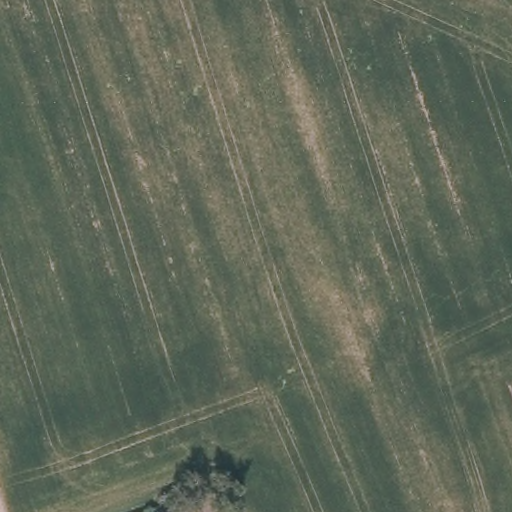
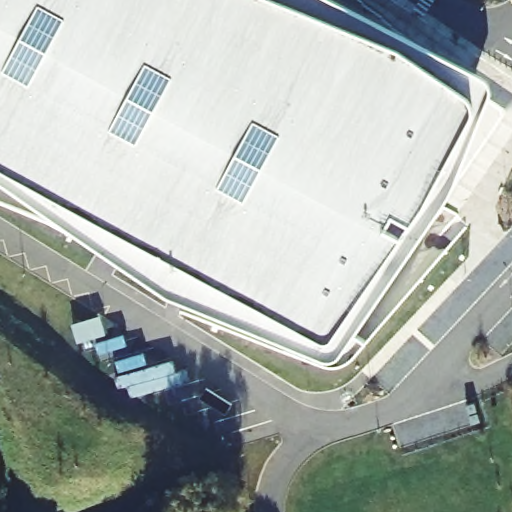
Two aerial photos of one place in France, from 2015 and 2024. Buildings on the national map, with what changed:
new [(393,54),(461,106),(470,117),(463,132),(328,345),(315,350),(0,179),(0,0),(257,0),(393,54)]

